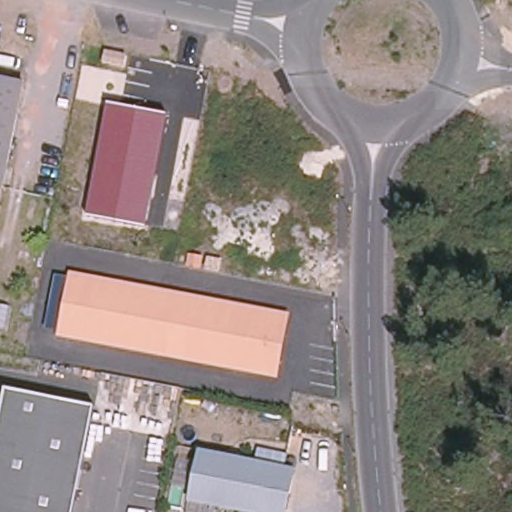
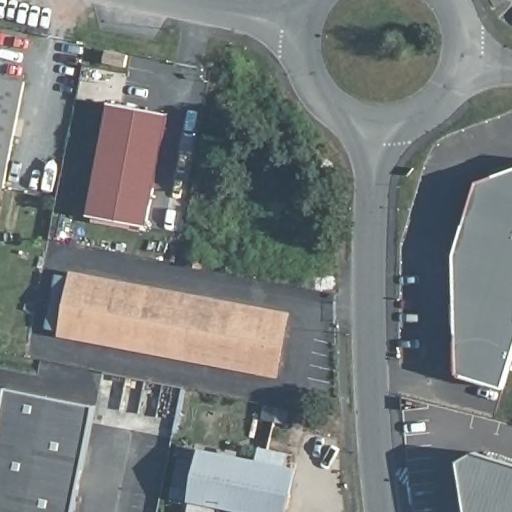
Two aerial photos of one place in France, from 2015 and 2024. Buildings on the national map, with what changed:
unchanged [(5,187),(2,187),(0,197),(0,77),(25,82),(5,187)]
unchanged [(85,214),(104,103),(168,113),(148,226),(85,214)]
new [(503,390),(457,375),(453,257),(477,180),(512,169),(512,362),(503,390)]
unchanged [(281,378),(60,336),(72,270),(293,311),(281,378)]
unchanged [(74,512),(0,512),(0,419),(6,386),(95,404),(74,512)]
unchanged [(257,462),(260,449),(289,454),(286,468),(294,470),(286,512),(249,512),(190,500),(199,451),(257,462)]
new [(471,452),(512,464),(512,512),(464,512),(455,461),(471,452)]

